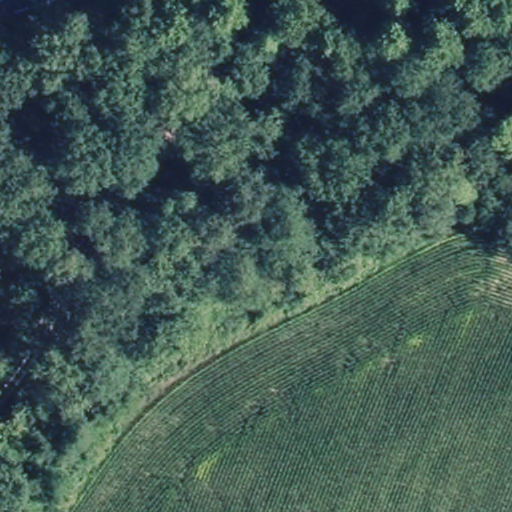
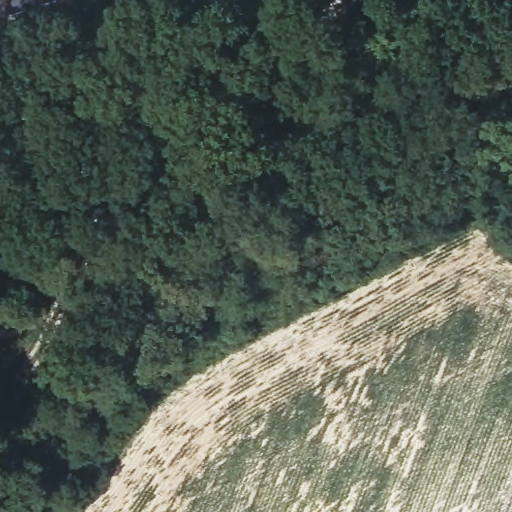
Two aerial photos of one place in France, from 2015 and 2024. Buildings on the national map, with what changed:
unchanged [(512,165),(512,215),(487,194),(512,165)]

